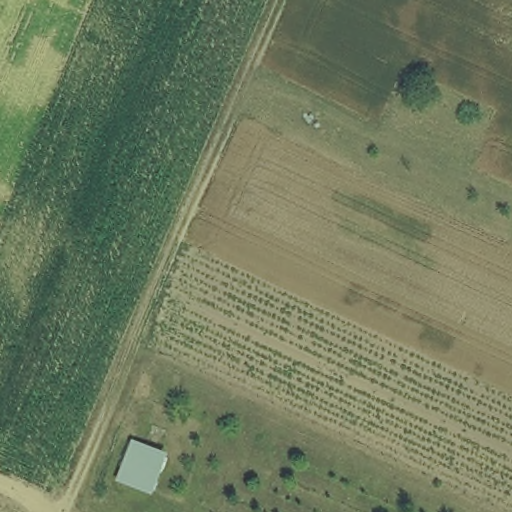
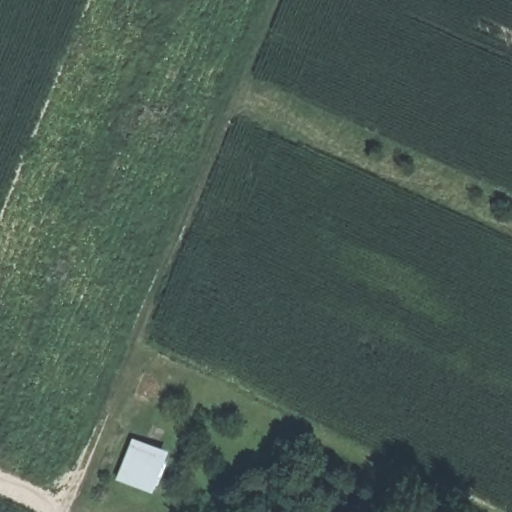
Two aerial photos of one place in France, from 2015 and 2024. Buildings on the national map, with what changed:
unchanged [(115,483),(127,454),(112,448),(117,433),(167,454),(150,495),(115,483)]

